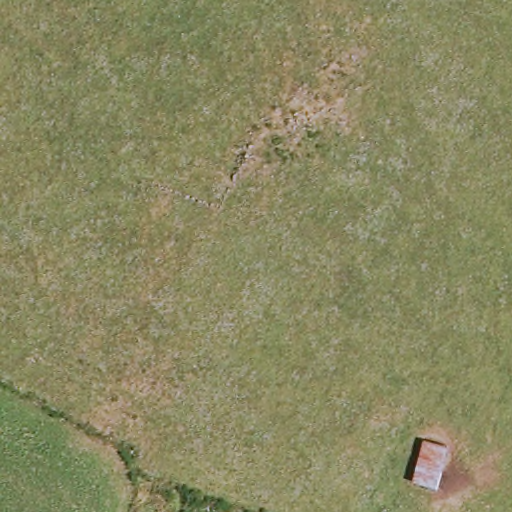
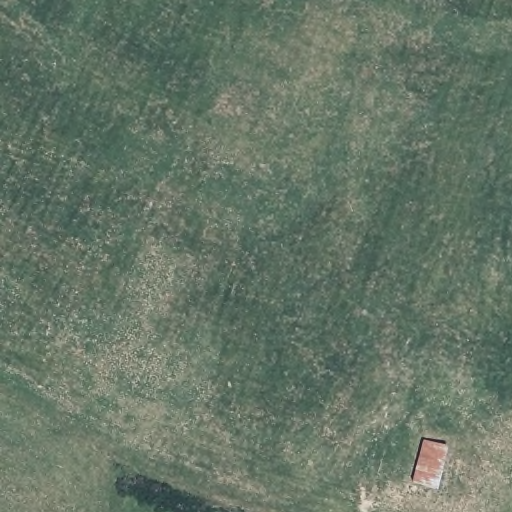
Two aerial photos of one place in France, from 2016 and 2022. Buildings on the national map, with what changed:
unchanged [(409,480),(420,435),(451,446),(440,489),(409,480)]

